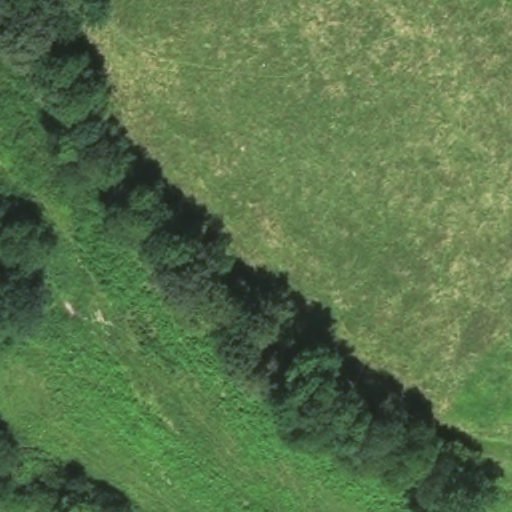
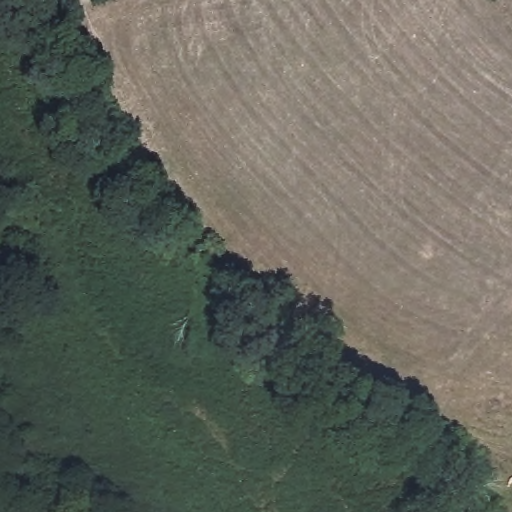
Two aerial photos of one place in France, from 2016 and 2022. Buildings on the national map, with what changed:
[]

